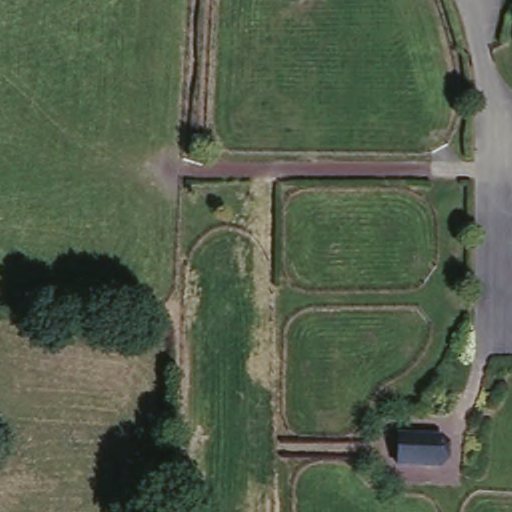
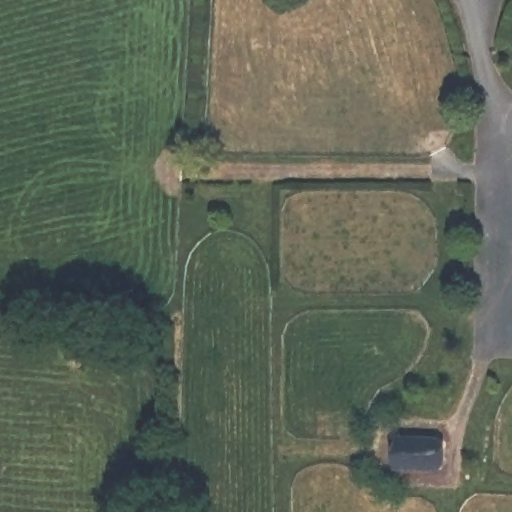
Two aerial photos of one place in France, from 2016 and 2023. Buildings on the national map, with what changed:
unchanged [(448,437),(445,470),(394,467),(396,437),(448,437)]

